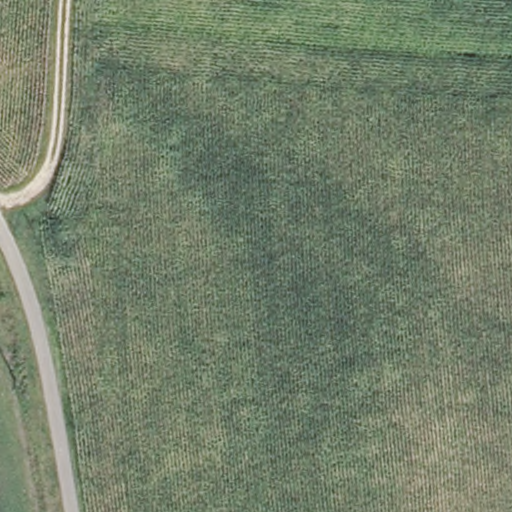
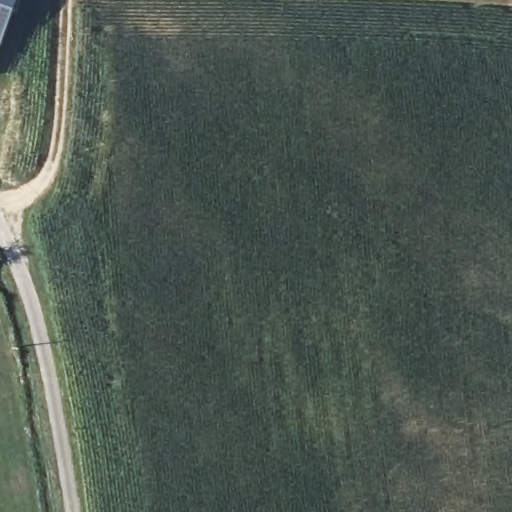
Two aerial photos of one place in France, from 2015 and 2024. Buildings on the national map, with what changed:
new [(0,52),(0,0),(18,0),(0,52)]

